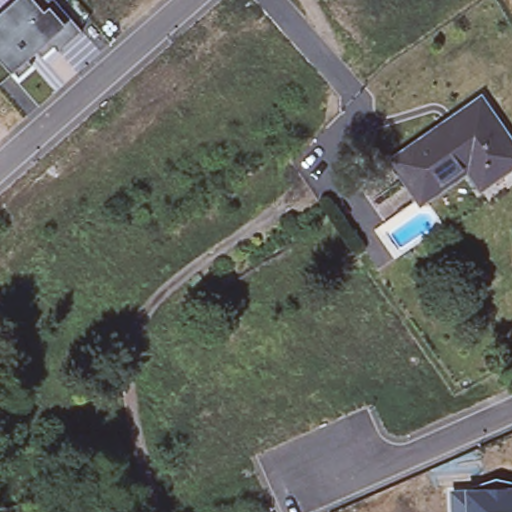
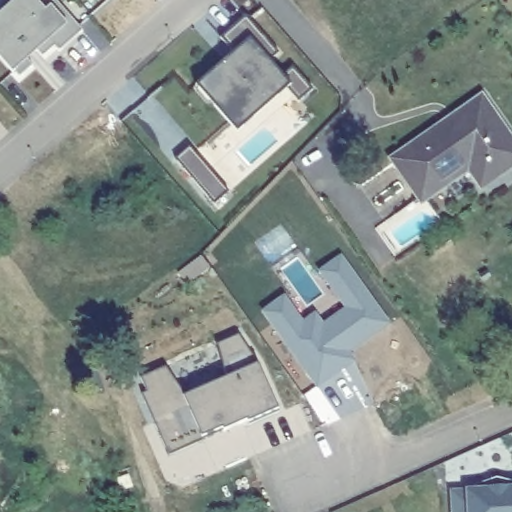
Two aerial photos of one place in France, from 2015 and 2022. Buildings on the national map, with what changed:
unchanged [(54,44),(15,80),(0,63),(0,16),(19,0),(54,0),(82,30),(61,52),(54,44)]
new [(235,55),(221,40),(247,18),(280,56),(271,64),(284,79),(295,70),(315,93),(300,105),(286,90),(238,132),(217,108),(221,105),(216,99),(210,104),(197,90),(226,64),(235,55)]
unchanged [(512,138),(512,165),(483,185),(470,166),(423,199),(394,157),(444,122),(448,129),(486,101),(512,138)]
new [(190,150),(230,195),(215,208),(175,162),(190,150)]
new [(285,295),(302,320),(315,313),(323,324),(347,307),(320,269),(342,255),(389,322),(348,350),(355,360),(317,386),(263,310),(285,295)]
new [(143,395),(148,392),(141,380),(167,368),(185,397),(228,377),(219,345),(240,335),(258,365),(277,411),(249,424),(247,420),(223,431),(221,429),(202,437),(203,440),(170,456),(143,395)]
unchanged [(512,491),(512,512),(455,512),(455,493),(512,491)]

